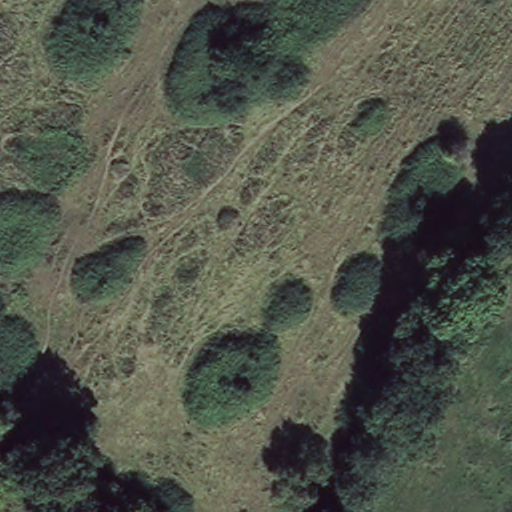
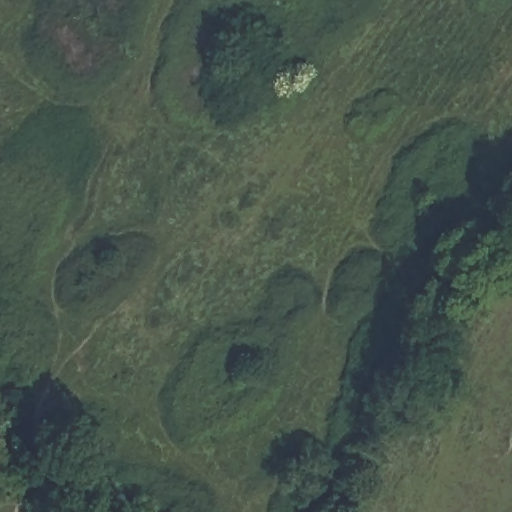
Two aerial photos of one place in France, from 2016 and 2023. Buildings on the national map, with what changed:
[]

